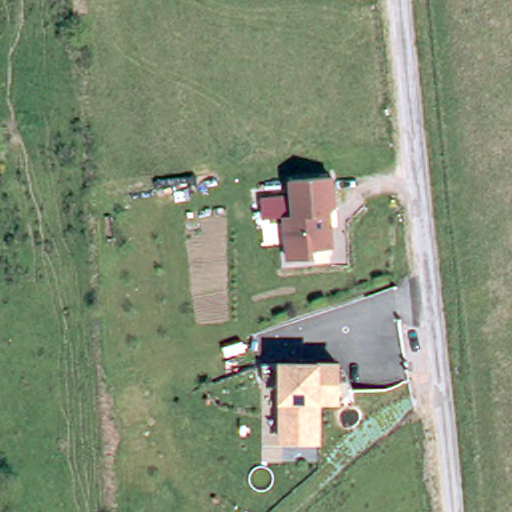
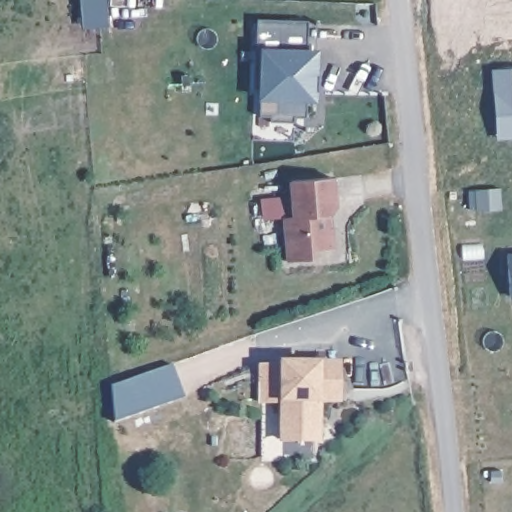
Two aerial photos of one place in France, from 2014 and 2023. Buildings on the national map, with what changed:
new [(82,26),(80,0),(98,0),(100,25),(82,26)]
new [(306,49),(317,49),(316,101),(305,101),(305,116),(293,115),(293,120),(270,120),(270,114),(259,113),(259,100),(259,86),(255,87),(257,20),(305,21),(306,49)]
new [(501,90),(498,55),(512,54),(512,121),(503,122),(501,90)]
unchanged [(330,170),(332,202),(327,209),(323,209),(325,221),(328,220),(330,241),(312,243),(312,252),(287,254),(283,210),(293,210),(290,174),(330,170)]
new [(512,297),(511,297),(508,251),(512,251),(512,297)]
new [(284,404),(258,403),(260,363),(285,362),(284,404)]
unchanged [(340,363),(340,400),(320,399),(320,439),(283,438),(285,362),(340,363)]
new [(172,365),(185,397),(115,423),(111,387),(172,365)]
new [(502,471),(502,482),(491,483),(490,472),(502,471)]

